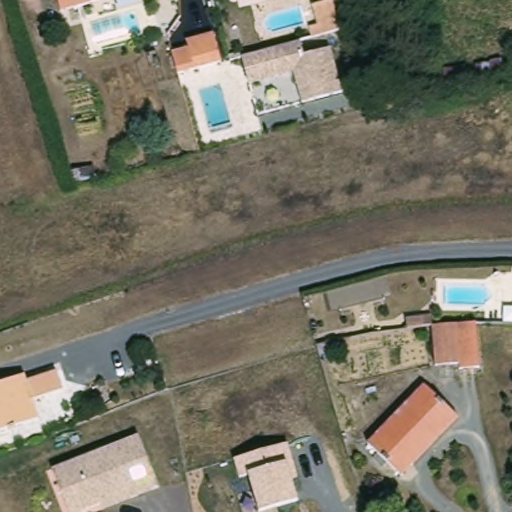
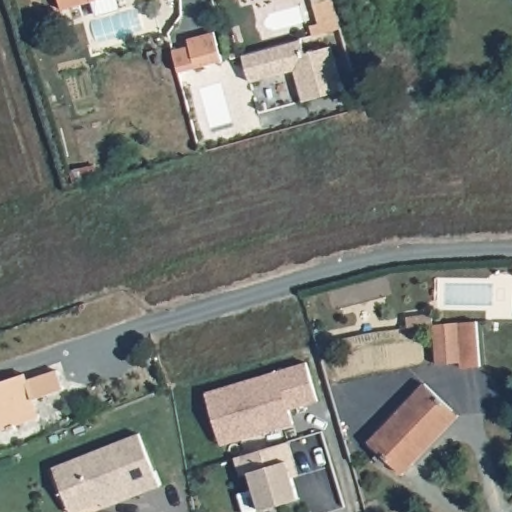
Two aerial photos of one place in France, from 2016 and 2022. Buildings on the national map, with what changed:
unchanged [(94,0),(98,0),(94,1),(94,0)]
new [(322,24),(320,17),(316,18),(312,8),(332,2),(340,29),(312,36),(310,27),(322,24)]
unchanged [(177,51),(194,47),(192,40),(218,32),(226,61),(199,68),(183,73),(177,51)]
unchanged [(292,71),(249,82),(241,56),(301,39),(305,51),(331,44),(342,89),(301,100),(292,71)]
unchanged [(437,324),(480,322),(484,366),(464,368),(464,363),(440,364),(437,324)]
new [(217,430),(206,391),(307,362),(317,400),(289,409),(293,423),(238,439),(221,444),(217,430)]
unchanged [(0,419),(0,384),(25,375),(34,372),(37,380),(67,369),(74,388),(42,399),(49,417),(5,432),(0,419)]
unchanged [(378,458),(383,453),(372,443),(428,384),(457,411),(462,416),(417,463),(406,475),(391,461),(387,466),(378,458)]
unchanged [(61,499),(49,469),(135,435),(155,487),(127,498),(99,509),(97,503),(82,509),(75,512),(66,512),(61,499)]
unchanged [(249,474),(240,476),(234,458),(287,443),(298,477),(292,480),(297,499),(259,510),(249,474)]

